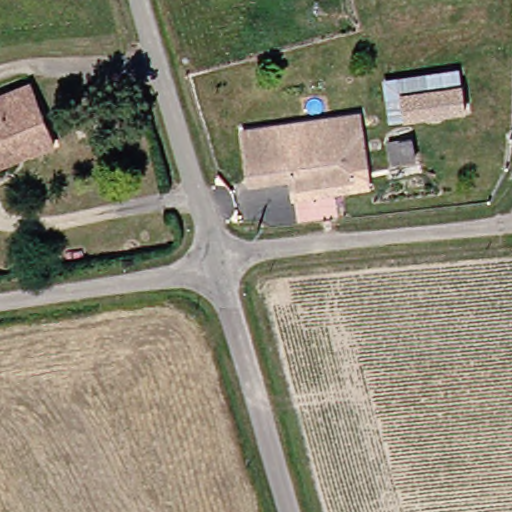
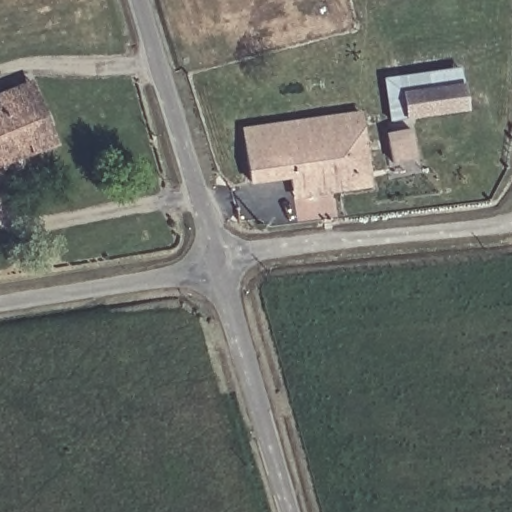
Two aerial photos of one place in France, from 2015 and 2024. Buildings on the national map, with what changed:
unchanged [(38,105),(50,140),(25,149),(0,158),(0,82),(27,72),(38,105)]
unchanged [(394,91),(455,81),(457,107),(397,116),(394,91)]
unchanged [(343,165),(345,180),(282,187),(282,173),(237,179),(232,128),(334,112),(354,110),(356,124),(360,162),(343,165)]
unchanged [(398,139),(411,137),(413,157),(401,160),(398,139)]

